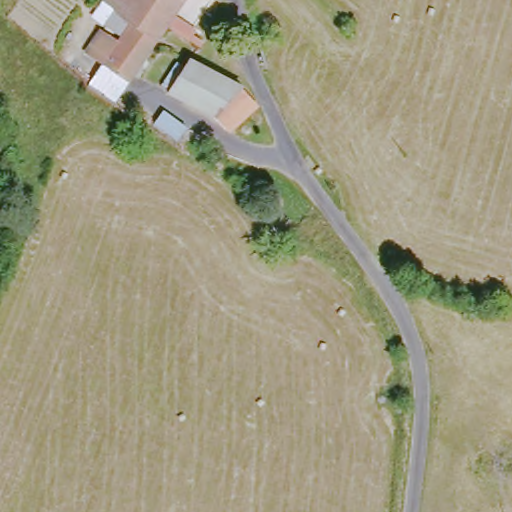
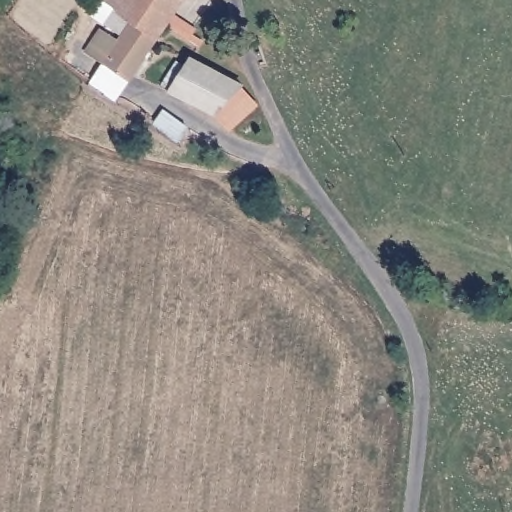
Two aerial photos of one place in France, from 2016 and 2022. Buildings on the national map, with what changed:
unchanged [(182,0),(167,21),(156,39),(102,4),(105,0),(182,0)]
unchanged [(155,39),(127,81),(85,53),(99,31),(117,44),(130,23),(155,39)]
unchanged [(227,130),(213,115),(169,89),(189,59),(241,89),(253,104),(227,130)]

